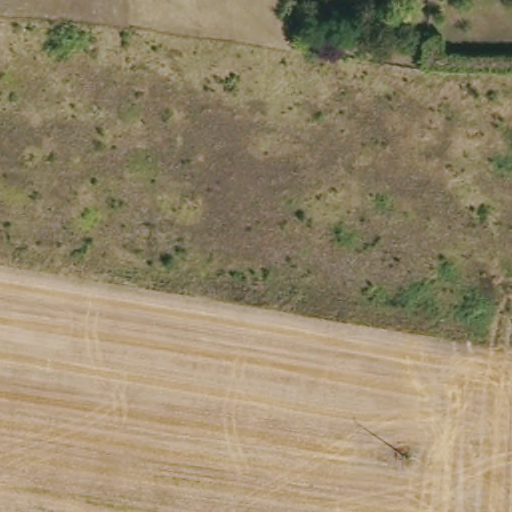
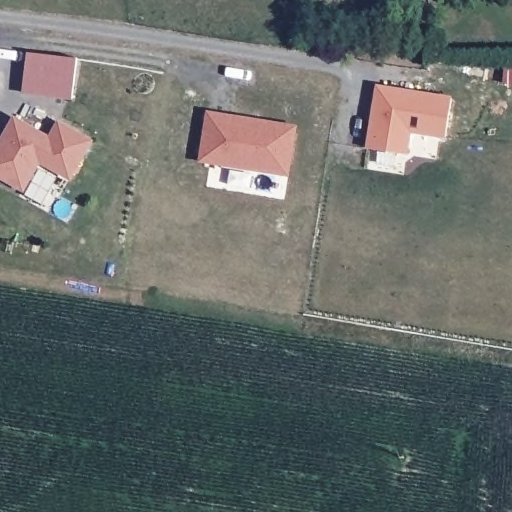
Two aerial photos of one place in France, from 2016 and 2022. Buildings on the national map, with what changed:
new [(20,92),(25,52),(75,57),(70,98),(20,92)]
new [(409,154),(367,148),(378,85),(453,96),(448,137),(412,133),(409,154)]
new [(202,161),(209,111),(299,126),(291,175),(202,161)]
new [(0,143),(16,117),(49,137),(60,121),(94,140),(72,180),(41,163),(24,191),(0,177),(0,143)]

